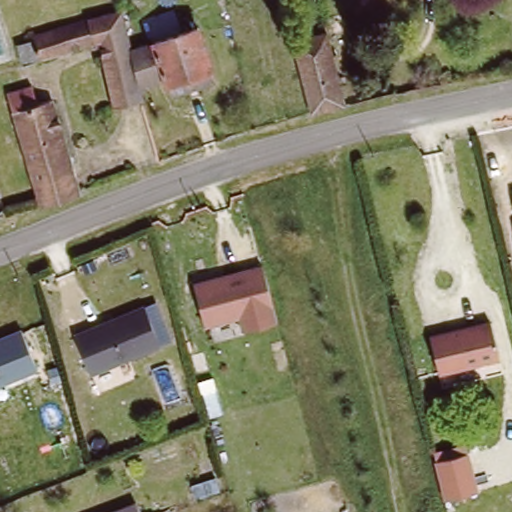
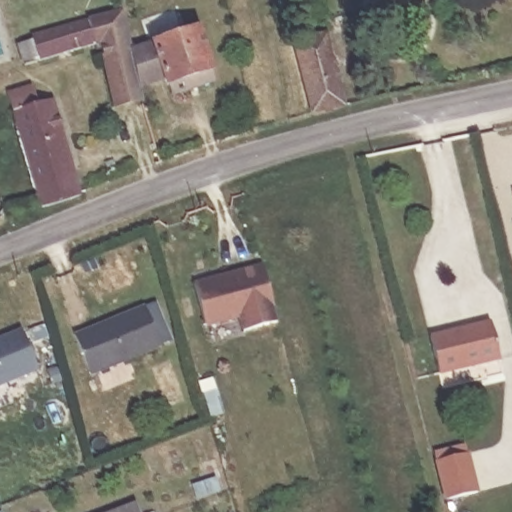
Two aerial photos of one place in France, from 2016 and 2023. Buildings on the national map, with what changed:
unchanged [(144,98),(117,103),(105,45),(32,63),(28,64),(23,41),(27,46),(37,43),(37,38),(126,12),(132,43),(138,41),(201,23),(217,79),(172,93),(167,78),(147,84),(141,85),(144,98)]
unchanged [(310,114),(295,40),(327,33),(345,103),(310,114)]
unchanged [(48,100),(52,110),(58,109),(60,117),(54,119),(75,192),(77,195),(37,208),(19,150),(12,151),(10,142),(16,141),(2,94),(28,87),(32,104),(48,100)]
unchanged [(262,264),(277,322),(243,331),(240,319),(207,328),(194,283),(262,264)]
unchanged [(156,304),(173,341),(159,347),(145,309),(156,304)]
unchanged [(145,309),(160,351),(93,379),(75,339),(145,309)]
unchanged [(434,339),(462,332),(489,325),(497,357),(471,364),(442,372),(434,339)]
unchanged [(21,329),(37,371),(0,386),(0,338),(21,329)]
unchanged [(433,453),(467,445),(477,493),(444,501),(433,453)]
unchanged [(213,453),(218,467),(200,474),(195,460),(213,453)]
unchanged [(141,512),(102,512),(137,498),(141,512)]

